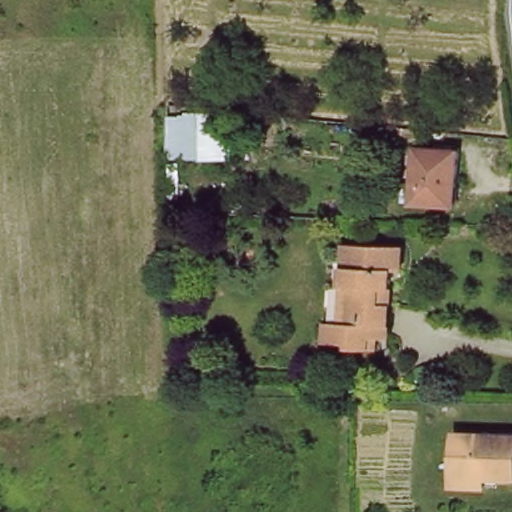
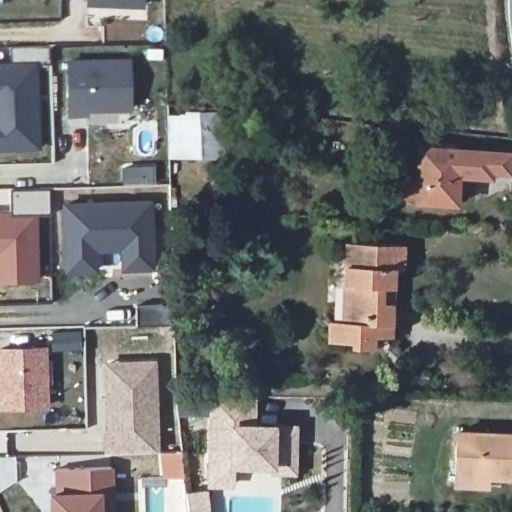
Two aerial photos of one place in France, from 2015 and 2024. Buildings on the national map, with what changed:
new [(141,10),(83,8),(83,0),(141,0),(141,10)]
new [(41,46),(42,64),(17,64),(16,47),(41,46)]
new [(92,109),(92,114),(75,114),(75,62),(135,61),(136,108),(92,109)]
new [(44,147),(0,148),(0,120),(11,119),(10,99),(6,99),(0,100),(0,65),(5,65),(17,65),(42,64),(44,147)]
new [(11,119),(0,120),(0,100),(10,99),(11,119)]
unchanged [(224,115),(224,163),(167,162),(170,115),(224,115)]
new [(469,147),(467,200),(427,198),(430,146),(469,147)]
new [(501,167),(500,173),(468,172),(469,147),(512,149),(512,168),(501,167)]
demolished [(461,149),(458,202),(417,200),(421,148),(461,149)]
new [(157,258),(134,258),(133,238),(95,239),(95,259),(72,259),(70,205),(156,203),(157,258)]
new [(11,216),(11,223),(36,222),(37,285),(0,285),(0,216),(11,216)]
new [(127,268),(127,248),(101,249),(102,269),(72,270),(72,259),(95,259),(95,239),(133,238),(134,258),(157,258),(157,268),(127,268)]
unchanged [(363,351),(345,350),(345,344),(320,344),(322,323),(335,322),(339,245),(397,245),(395,271),(387,270),(386,287),(385,305),(384,340),(377,340),(377,352),(363,351)]
new [(176,305),(176,325),(141,326),(141,306),(176,305)]
new [(51,405),(4,407),(3,349),(49,348),(51,405)]
new [(156,360),(159,450),(104,450),(104,362),(156,360)]
new [(217,395),(216,416),(182,415),(180,394),(217,395)]
new [(214,469),(217,395),(258,397),(257,426),(265,426),(265,427),(295,428),(294,442),(299,442),(298,473),(276,472),(276,467),(236,465),(236,470),(236,485),(214,484),(214,469)]
unchanged [(503,477),(503,484),(459,484),(459,433),(512,434),(512,477),(503,477)]
new [(115,468),(116,494),(116,512),(63,512),(62,469),(115,468)]
new [(63,494),(63,512),(55,512),(55,494),(63,494)]

